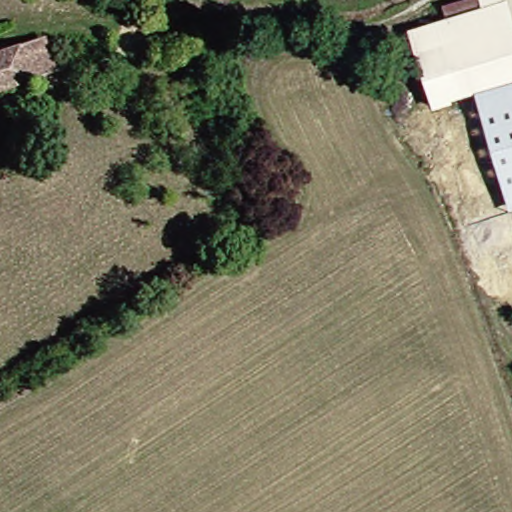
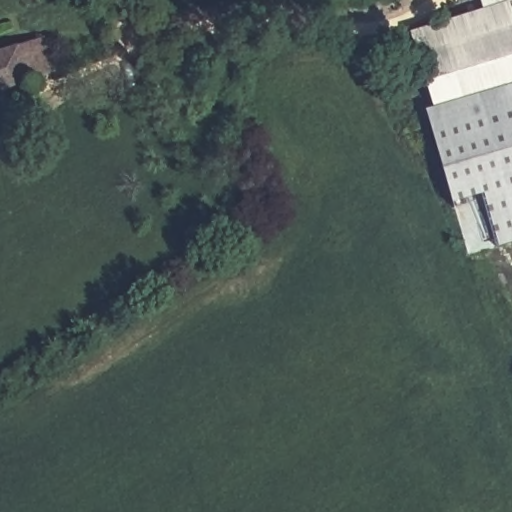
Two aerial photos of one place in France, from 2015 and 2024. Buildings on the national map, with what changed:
unchanged [(509,0),(510,2),(512,11),(512,84),(478,94),(462,99),(437,23),(486,8),(482,0),(509,0)]
unchanged [(462,99),(434,106),(412,31),(437,23),(462,99)]
unchanged [(20,50),(45,42),(52,75),(28,82),(0,90),(0,55),(15,51),(20,50)]
new [(478,94),(512,84),(512,214),(511,214),(478,94)]
new [(425,111),(434,106),(462,99),(478,94),(511,214),(512,214),(512,243),(467,256),(425,111)]

